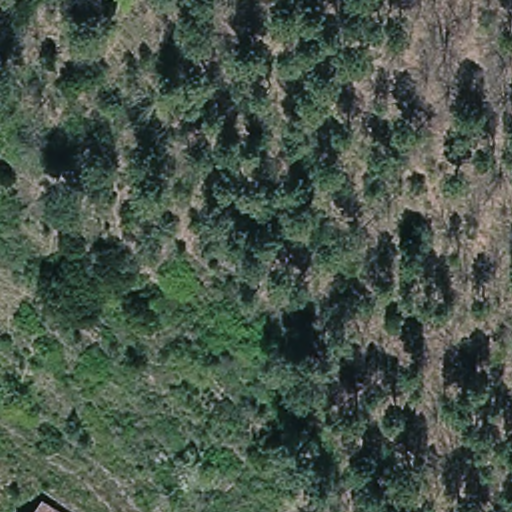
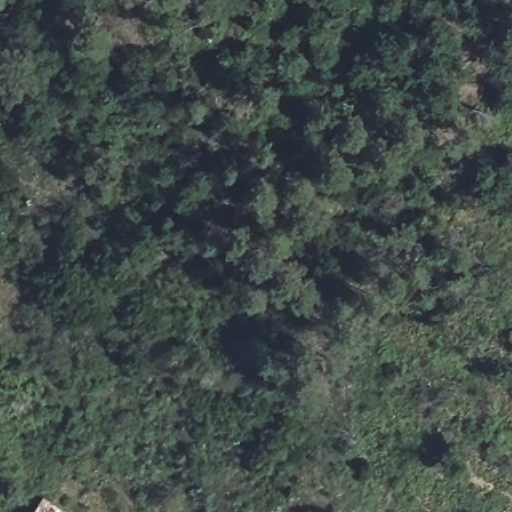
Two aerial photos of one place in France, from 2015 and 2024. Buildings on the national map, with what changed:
unchanged [(44,497),(66,512),(35,512),(44,497)]

